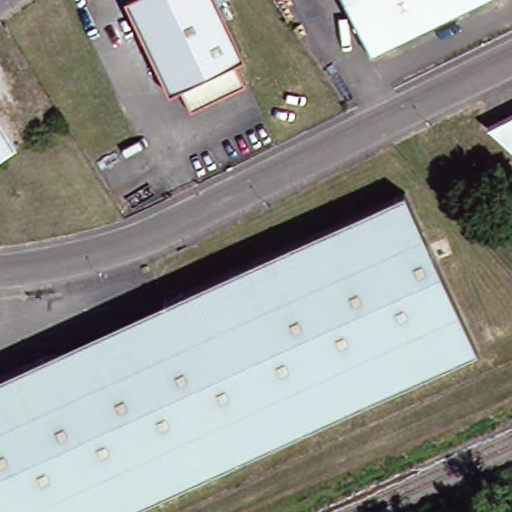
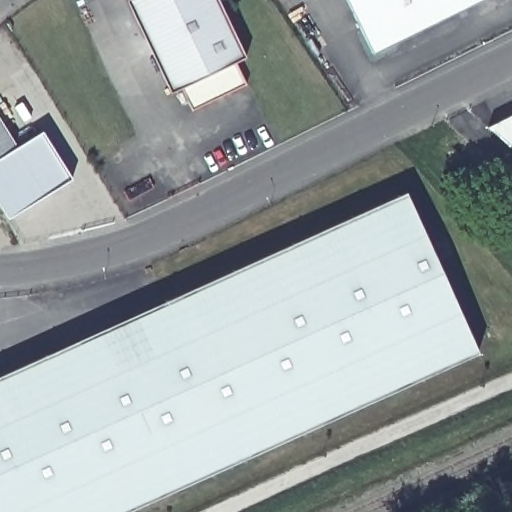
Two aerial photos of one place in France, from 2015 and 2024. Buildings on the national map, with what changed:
unchanged [(231,64),(241,86),(186,112),(176,90),(166,95),(121,2),(126,0),(221,0),(215,3),(241,59),(231,64)]
unchanged [(373,53),(346,0),(481,0),(373,53)]
unchanged [(512,118),(512,152),(488,130),(512,118)]
unchanged [(0,129),(14,151),(0,159),(0,129)]
new [(14,151),(13,149),(43,131),(73,179),(9,218),(0,204),(0,159),(1,159),(14,151)]
unchanged [(473,356),(125,512),(0,512),(0,375),(44,355),(163,347),(159,304),(401,196),(473,356)]
unchanged [(159,304),(163,347),(44,355),(159,304)]

